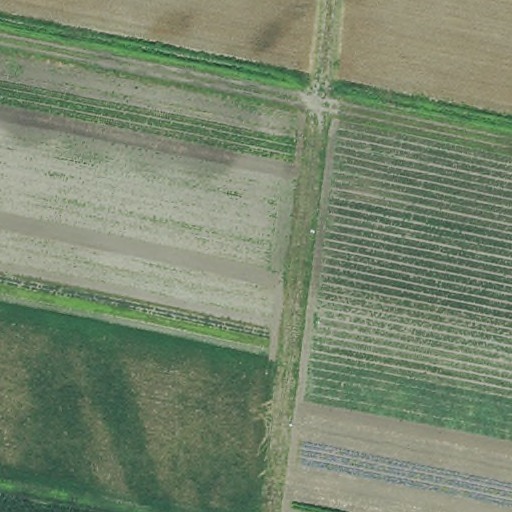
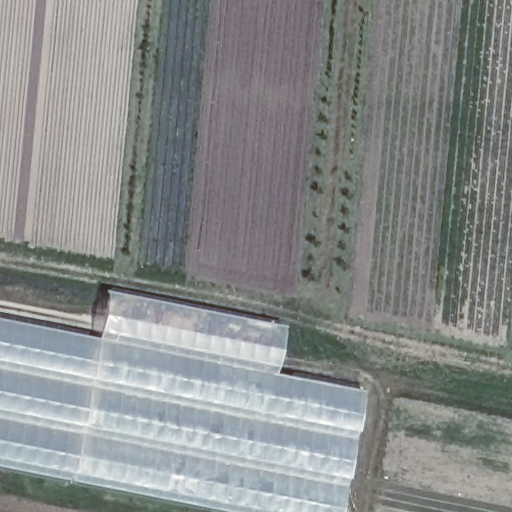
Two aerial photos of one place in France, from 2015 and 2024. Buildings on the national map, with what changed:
new [(97,340),(106,292),(284,327),(275,374),(362,390),(339,512),(223,512),(0,468),(0,319),(97,340)]

